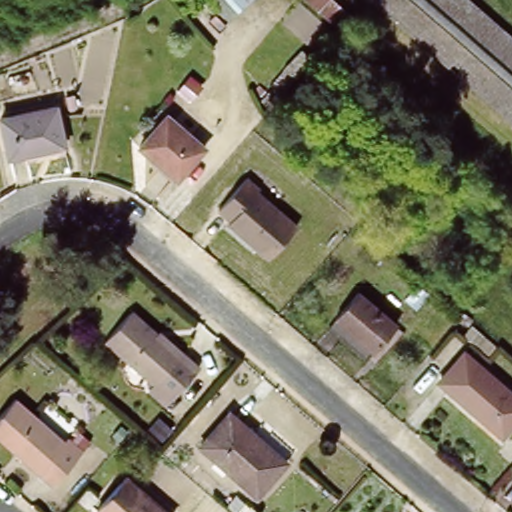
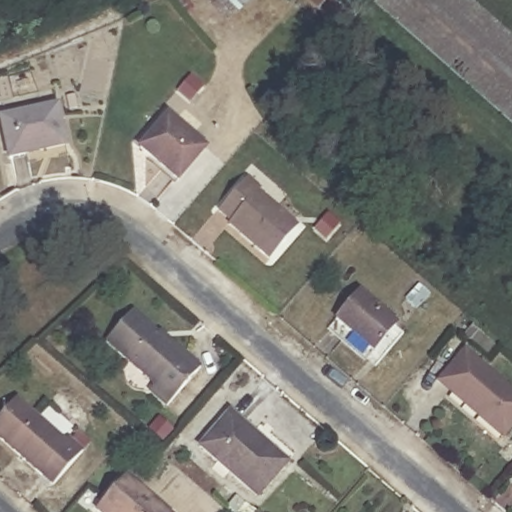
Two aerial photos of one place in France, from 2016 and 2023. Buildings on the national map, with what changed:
unchanged [(342,31),(329,19),(309,0),(341,0),(358,15),(342,31)]
unchanged [(373,4),(377,0),(459,0),(512,47),(512,126),(373,4)]
unchanged [(54,109),(62,145),(10,158),(1,124),(54,109)]
unchanged [(201,148),(178,178),(135,148),(160,114),(201,148)]
unchanged [(296,227),(268,262),(229,229),(232,224),(217,214),(246,179),(261,189),(257,194),(296,227)]
unchanged [(400,324),(380,348),(340,320),(361,295),(400,324)]
unchanged [(163,336),(165,334),(197,364),(165,402),(146,387),(150,381),(106,340),(131,310),(163,336)]
unchanged [(512,389),(512,423),(505,430),(454,388),(459,383),(447,372),(466,349),(512,389)]
unchanged [(60,443),(76,458),(72,462),(46,491),(0,449),(0,417),(10,407),(55,448),(60,443)]
unchanged [(282,461),(254,496),(200,449),(228,414),(282,461)]
unchanged [(157,512),(97,512),(123,481),(157,512)]

